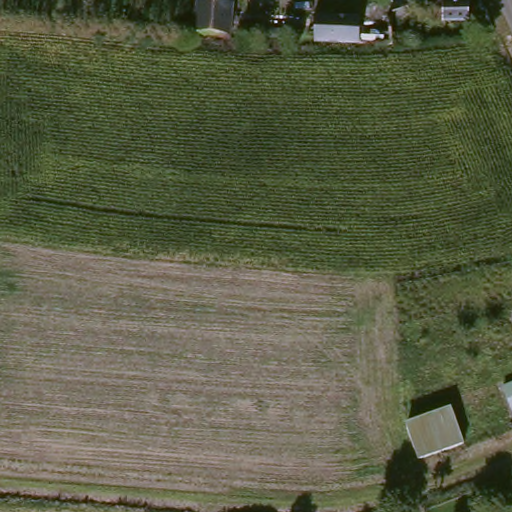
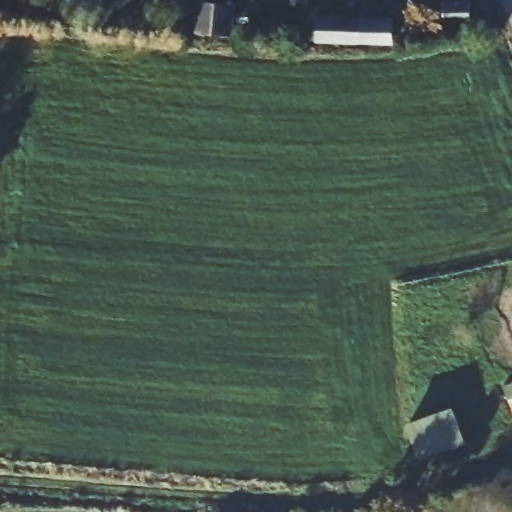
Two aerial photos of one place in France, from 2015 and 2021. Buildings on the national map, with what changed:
unchanged [(204,0),(237,0),(234,31),(202,29),(204,0)]
unchanged [(443,1),(472,2),(471,21),(442,20),(443,1)]
unchanged [(363,16),(362,39),(318,36),(321,14),(363,16)]
unchanged [(512,394),(509,387),(512,386),(512,394)]
unchanged [(423,455),(413,422),(457,403),(472,439),(423,455)]

